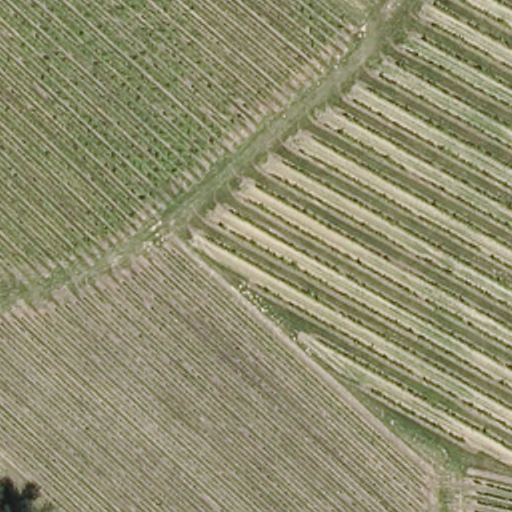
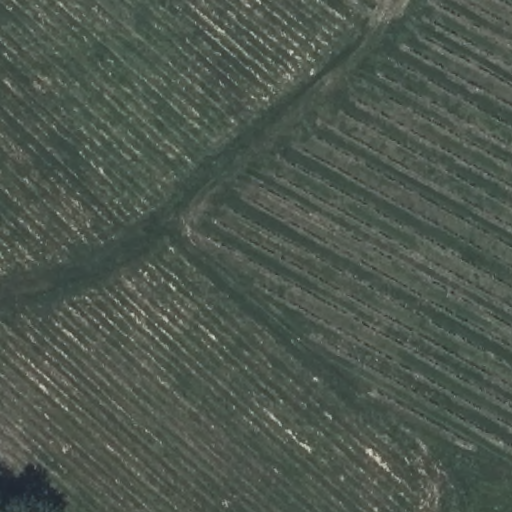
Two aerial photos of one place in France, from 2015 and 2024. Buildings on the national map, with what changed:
[]

